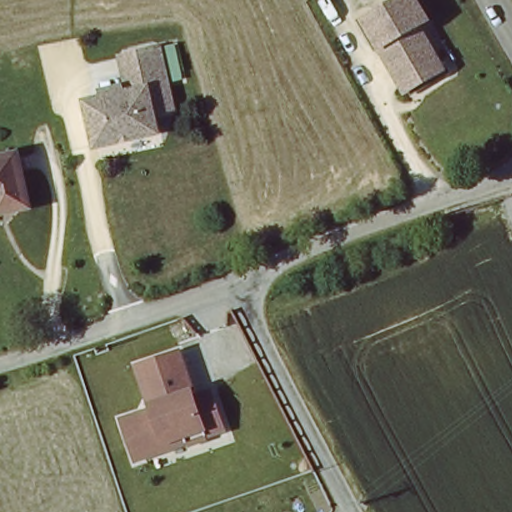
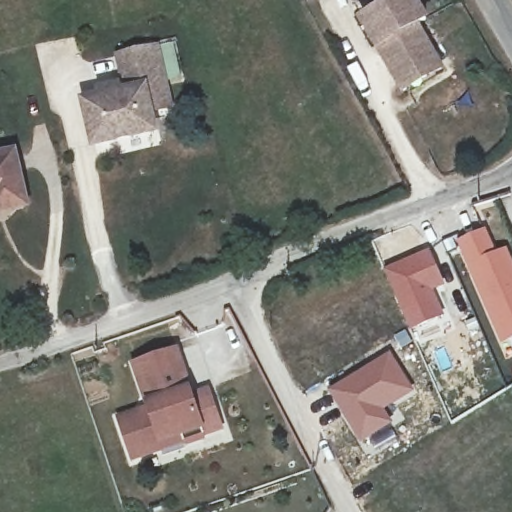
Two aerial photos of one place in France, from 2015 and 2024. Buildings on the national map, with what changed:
unchanged [(422,18),(413,25),(440,69),(403,93),(360,23),(396,0),(410,0),(422,18)]
unchanged [(157,52),(170,112),(150,116),(153,135),(95,147),(85,105),(103,101),(102,99),(120,95),(120,97),(132,95),(124,59),(157,52)]
unchanged [(27,200),(5,205),(0,206),(0,149),(15,146),(27,200)]
new [(485,227),(497,250),(507,246),(512,257),(512,340),(500,346),(467,273),(454,238),(485,227)]
new [(428,247),(445,285),(435,290),(445,316),(408,331),(381,268),(428,247)]
new [(388,349),(414,391),(385,410),(392,423),(358,443),(326,388),(388,349)]
unchanged [(130,458),(122,436),(115,418),(147,407),(132,365),(172,351),(187,396),(204,391),(208,404),(212,416),(217,428),(200,434),(180,441),(146,453),(130,458)]

